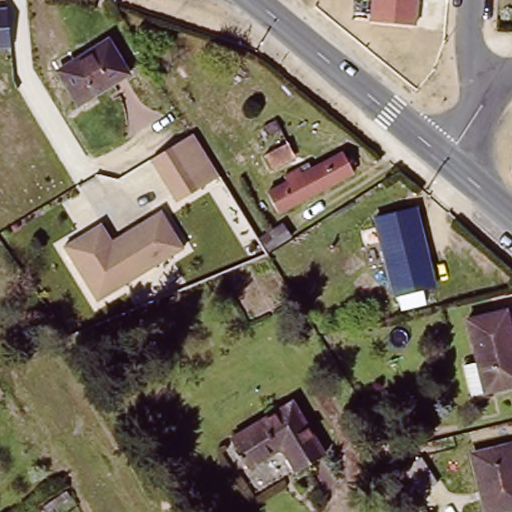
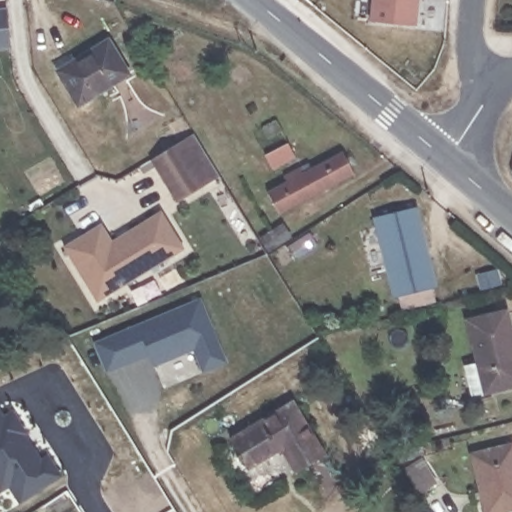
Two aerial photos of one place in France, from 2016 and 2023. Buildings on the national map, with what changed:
unchanged [(419,0),(416,24),(370,19),(371,0),(419,0)]
unchanged [(10,47),(0,48),(0,9),(7,8),(10,47)]
unchanged [(57,66),(94,43),(107,35),(127,67),(114,75),(77,98),(57,66)]
unchanged [(176,200),(151,157),(158,152),(176,141),(202,184),(185,195),(176,200)]
unchanged [(262,155),(285,144),(292,156),(270,168),(262,155)]
unchanged [(286,206),(278,191),(283,188),(281,184),(335,153),(346,173),(286,206)]
unchanged [(410,204),(428,282),(393,290),(375,213),(410,204)]
unchanged [(101,222),(110,239),(161,209),(183,247),(96,298),(62,243),(101,222)]
unchanged [(256,233),(263,229),(275,222),(285,238),(272,245),(266,249),(256,233)]
new [(200,299),(226,363),(203,373),(193,349),(153,366),(149,356),(106,373),(93,343),(200,299)]
unchanged [(486,388),(486,384),(471,388),(464,359),(478,355),(468,314),(508,304),(512,319),(512,382),(486,388)]
unchanged [(290,399),(325,450),(296,469),(280,445),(248,466),(230,439),(290,399)]
new [(15,414),(27,434),(25,436),(42,464),(50,459),(61,478),(21,503),(10,487),(1,492),(0,490),(0,420),(1,422),(15,414)]
unchanged [(505,444),(512,470),(512,504),(480,512),(466,453),(505,444)]
unchanged [(420,456),(435,481),(418,493),(402,468),(420,456)]
unchanged [(54,512),(46,512),(43,509),(67,495),(71,501),(54,512)]

